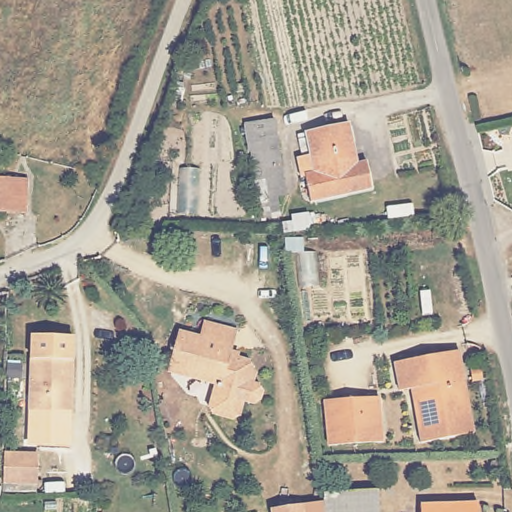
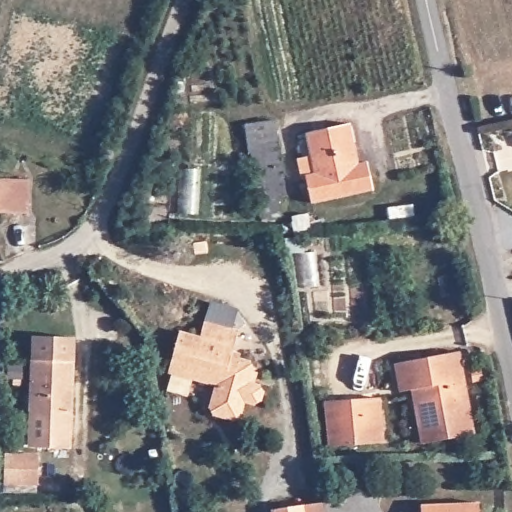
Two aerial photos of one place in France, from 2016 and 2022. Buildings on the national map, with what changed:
unchanged [(357,162),(369,160),(375,194),(313,205),(305,157),(314,156),(311,133),(351,126),(357,162)]
unchanged [(289,197),(271,199),(265,142),(282,140),(289,197)]
unchanged [(0,217),(0,185),(8,185),(6,217),(0,217)]
unchanged [(237,357),(259,363),(254,383),(262,386),(264,389),(264,394),(264,398),(261,403),(255,405),(246,402),(239,421),(208,410),(217,382),(170,366),(183,325),(204,332),(209,316),(245,330),(237,357)]
unchanged [(458,350),(474,433),(420,443),(416,419),(425,418),(419,385),(398,389),(393,361),(458,350)]
unchanged [(58,424),(57,408),(36,408),(34,361),(75,359),(77,409),(77,425),(58,424)]
unchanged [(379,396),(385,441),(330,448),(324,402),(379,396)]
unchanged [(38,459),(39,483),(6,484),(5,460),(38,459)]
unchanged [(378,512),(324,512),(321,491),(378,491),(378,512)]
unchanged [(484,505),(484,512),(423,512),(424,504),(484,505)]
unchanged [(268,512),(302,509),(302,512),(268,512)]

